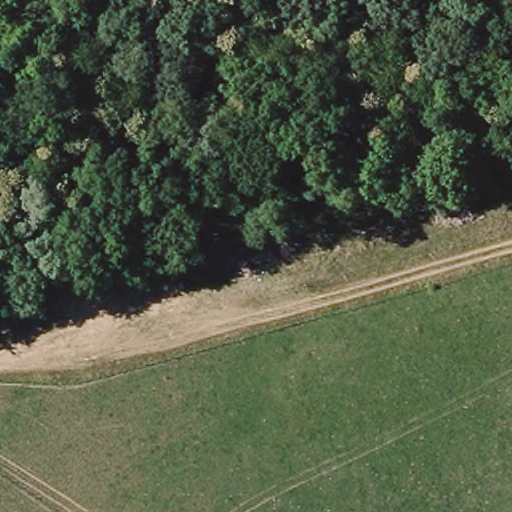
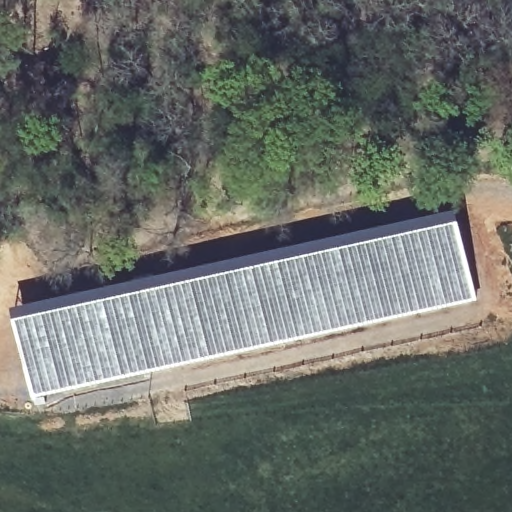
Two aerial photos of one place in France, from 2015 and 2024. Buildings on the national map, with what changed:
new [(153,275),(457,208),(477,299),(165,367),(33,397),(14,308),(153,275)]

